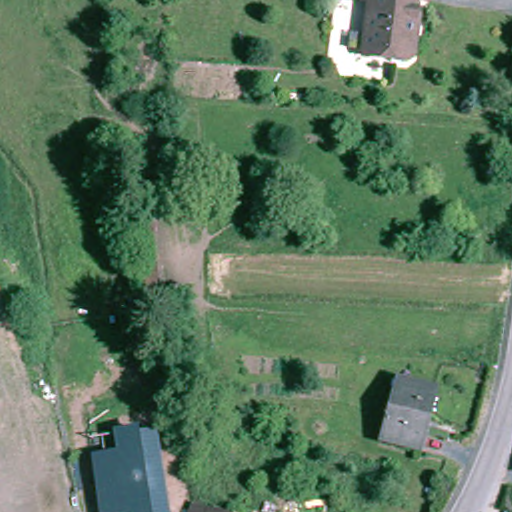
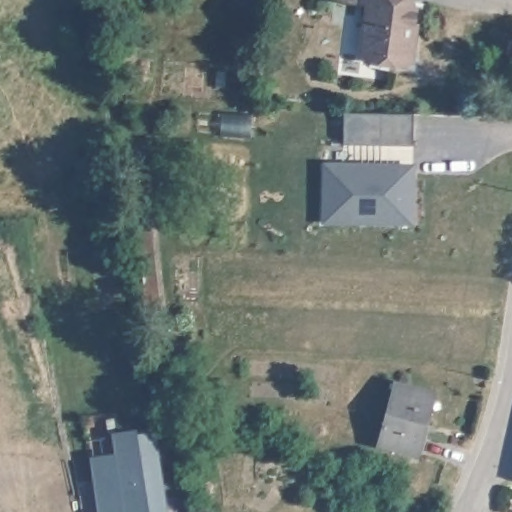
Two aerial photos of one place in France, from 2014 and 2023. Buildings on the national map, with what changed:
unchanged [(422,8),(420,28),(418,28),(417,38),(420,38),(419,61),(411,66),(397,65),(393,58),(368,56),(375,3),(368,2),(368,0),(408,0),(407,0),(415,1),(422,8)]
new [(346,114),(416,114),(416,146),(346,145),(346,114)]
new [(327,166),(397,166),(415,166),(415,174),(415,224),(349,224),(327,224),(327,188),(327,166)]
demolished [(150,290),(137,220),(171,214),(175,288),(150,290)]
unchanged [(440,390),(425,448),(386,438),(403,380),(440,390)]
unchanged [(114,452),(111,434),(138,429),(140,436),(157,434),(171,512),(97,512),(88,457),(114,452)]
unchanged [(215,512),(195,512),(197,506),(215,512)]

